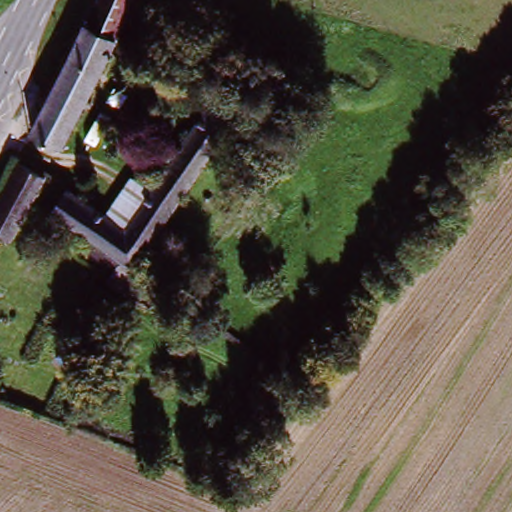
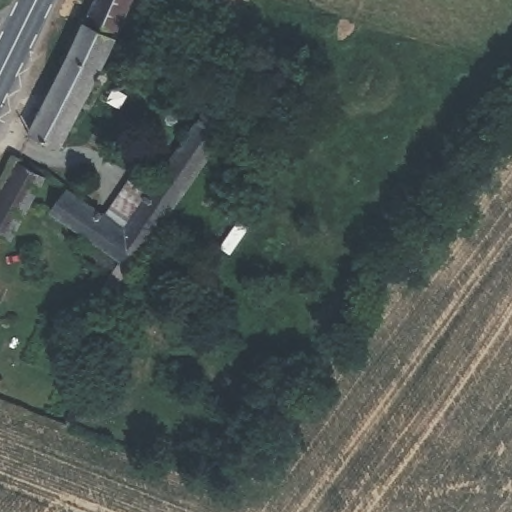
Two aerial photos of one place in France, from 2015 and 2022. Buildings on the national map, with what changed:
unchanged [(134,0),(125,16),(62,145),(32,131),(95,0),(134,0)]
unchanged [(71,187),(122,224),(225,87),(250,106),(126,270),(54,211),(71,187)]
unchanged [(0,179),(7,165),(48,184),(11,242),(0,236),(0,179)]

